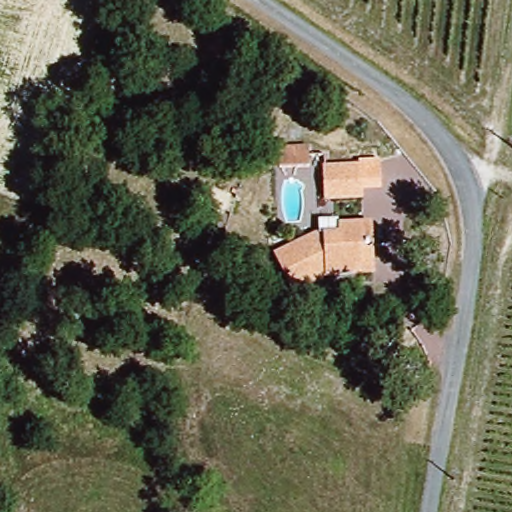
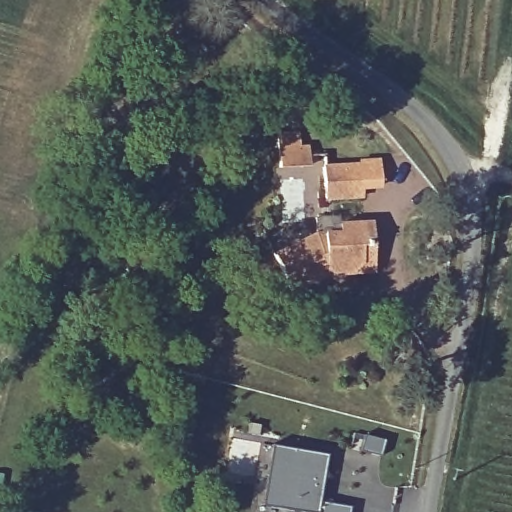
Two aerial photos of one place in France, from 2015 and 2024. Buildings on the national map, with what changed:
unchanged [(301,146),(301,160),(272,160),(272,146),(301,146)]
unchanged [(358,165),(358,199),(323,199),(323,165),(358,165)]
unchanged [(357,271),(315,272),(294,285),(277,250),(309,232),(322,232),(322,220),(343,220),(366,220),(367,250),(367,271),(357,271)]
new [(351,505),(350,512),(301,512),(266,506),(261,506),(271,445),(276,445),(327,453),(320,500),(351,505)]

